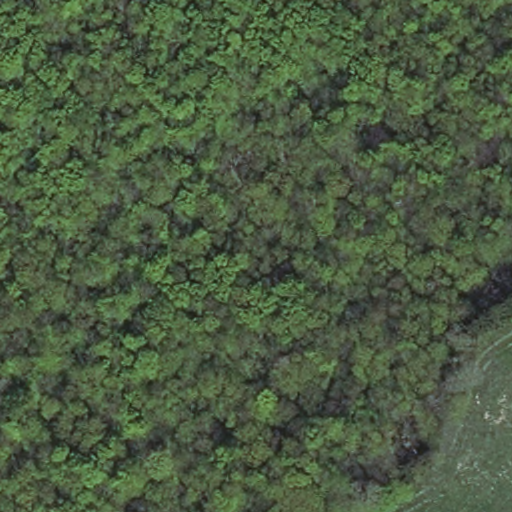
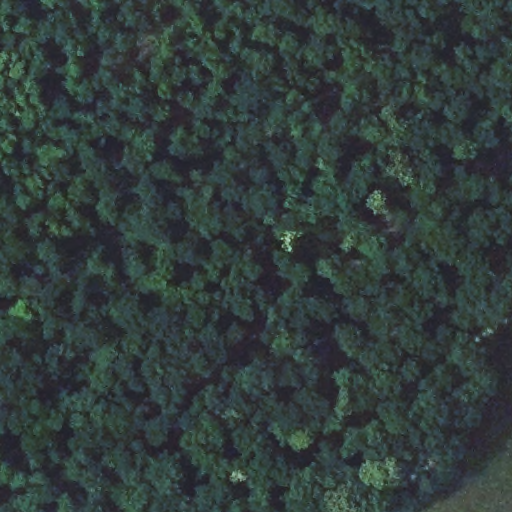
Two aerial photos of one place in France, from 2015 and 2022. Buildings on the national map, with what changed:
[]

